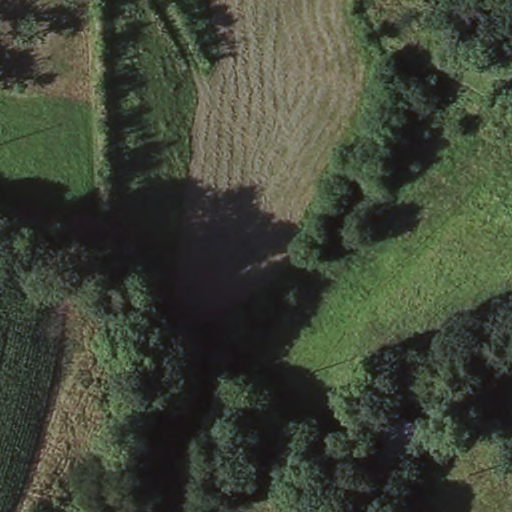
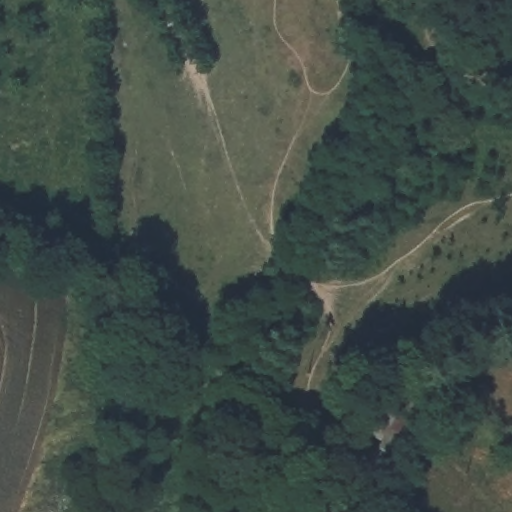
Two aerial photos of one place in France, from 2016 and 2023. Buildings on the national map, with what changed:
unchanged [(390,445),(377,435),(392,415),(422,435),(386,486),(370,475),(390,445)]

